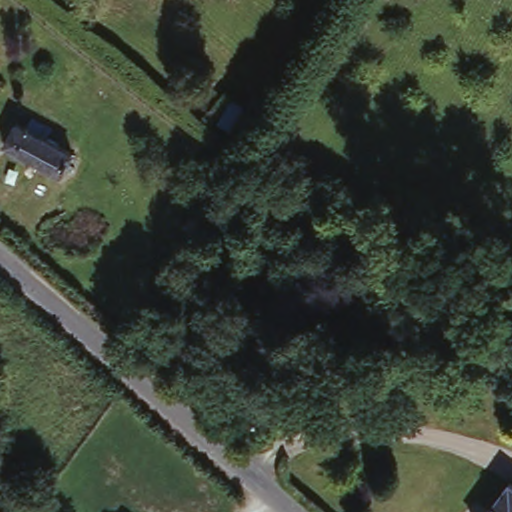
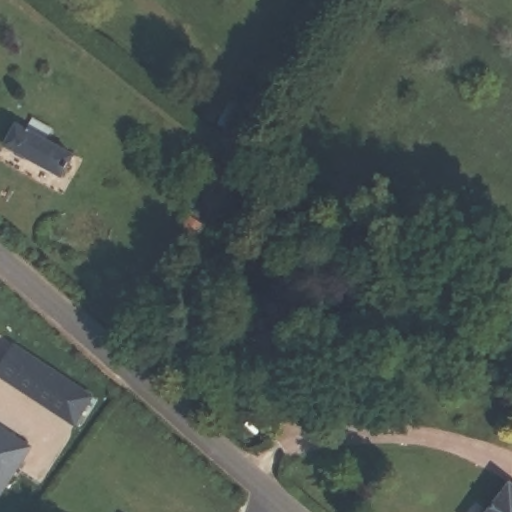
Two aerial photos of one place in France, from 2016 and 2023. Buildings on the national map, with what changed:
unchanged [(257,111),(241,138),(217,124),(231,98),(257,111)]
unchanged [(74,152),(60,176),(4,145),(17,120),(74,152)]
new [(12,342),(91,396),(72,426),(0,377),(0,364),(12,342)]
new [(28,447),(0,492),(0,427),(28,447)]
unchanged [(512,512),(486,512),(510,480),(512,481),(512,512)]

